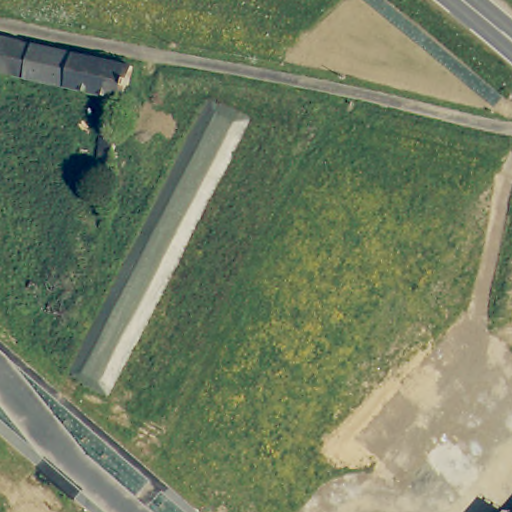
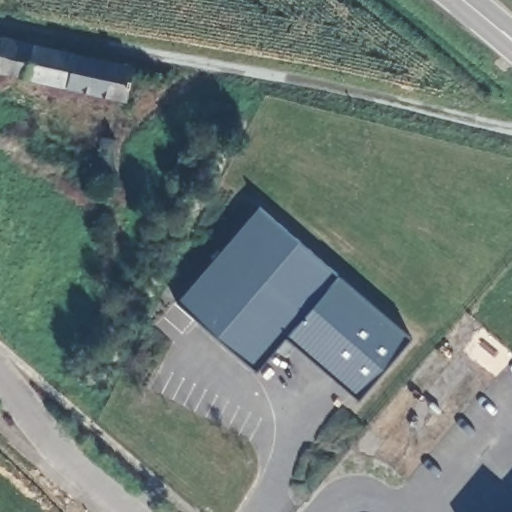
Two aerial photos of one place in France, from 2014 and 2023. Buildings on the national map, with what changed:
unchanged [(0,38),(33,45),(25,78),(0,72),(0,38)]
unchanged [(25,78),(33,45),(133,67),(125,100),(25,78)]
unchanged [(109,174),(94,172),(99,138),(114,140),(109,174)]
new [(261,206),(337,275),(409,339),(358,398),(285,336),(256,370),(177,301),(261,206)]

